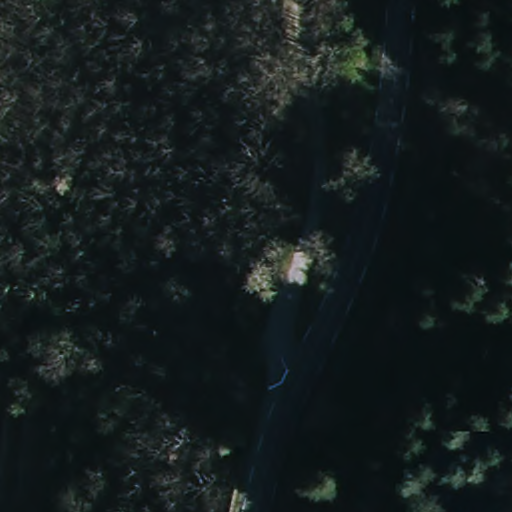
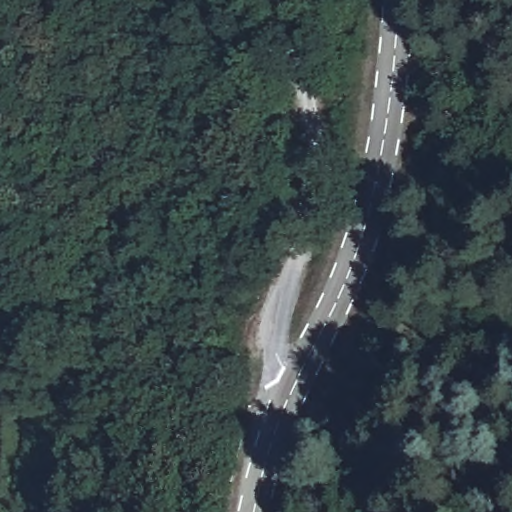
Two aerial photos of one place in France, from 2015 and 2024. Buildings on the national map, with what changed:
unchanged [(477,348),(483,331),(503,337),(496,356),(477,348)]
unchanged [(57,512),(59,482),(83,483),(80,512),(57,512)]

